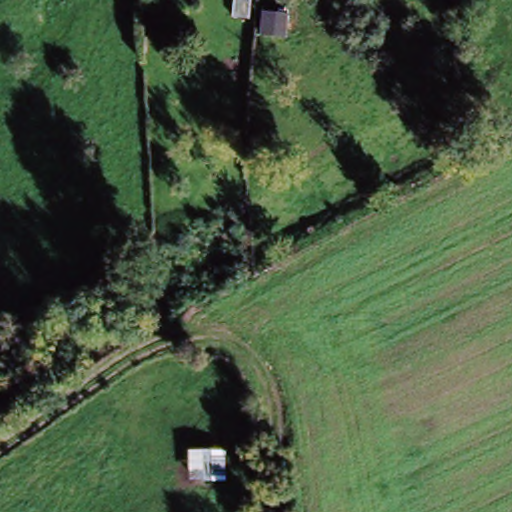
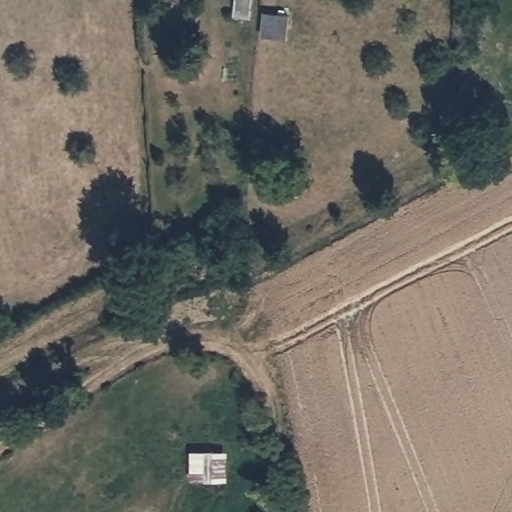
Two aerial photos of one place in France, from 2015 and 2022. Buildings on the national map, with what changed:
unchanged [(231,19),(233,0),(252,0),(250,20),(231,19)]
unchanged [(295,9),(291,42),(261,37),(267,7),(295,9)]

